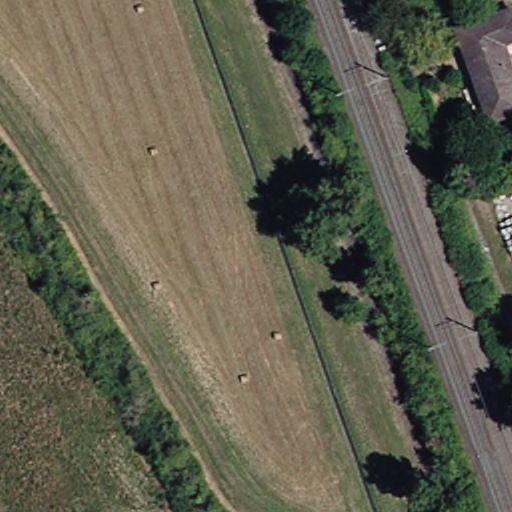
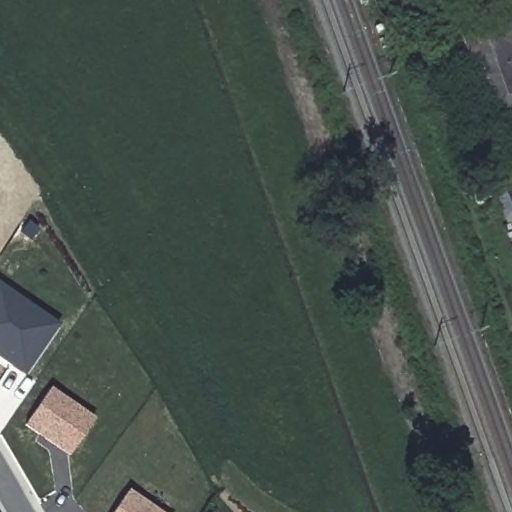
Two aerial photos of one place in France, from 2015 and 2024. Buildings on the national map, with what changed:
unchanged [(512,40),(499,45),(512,80),(512,112),(486,121),(453,31),(509,11),(512,17),(512,40)]
new [(23,303),(56,325),(48,337),(22,374),(0,358),(0,287),(23,303)]
new [(54,390),(98,420),(74,455),(30,425),(54,390)]
new [(134,492),(164,512),(121,512),(134,492)]

